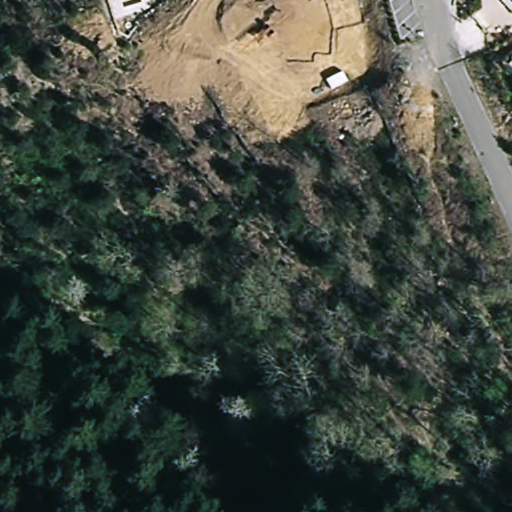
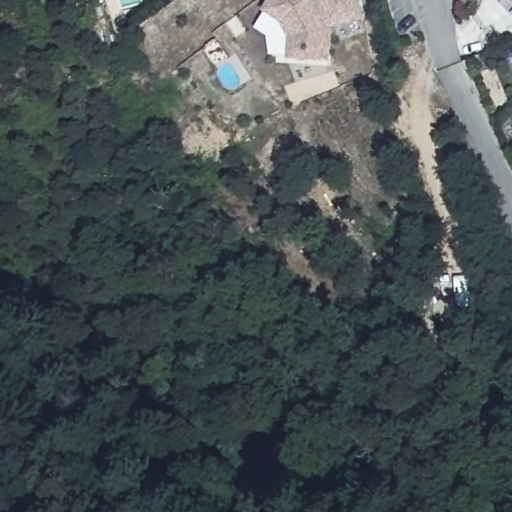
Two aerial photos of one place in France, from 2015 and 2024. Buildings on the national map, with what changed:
new [(260,3),(258,0),(264,0),(260,3)]
new [(311,62),(292,62),(292,43),(283,27),(266,17),(277,0),(309,0),(310,1),(313,0),(354,0),(360,24),(329,33),(326,23),(321,24),(328,36),(328,54),(327,63),(311,62)]
unchanged [(512,5),(507,0),(512,0),(512,5)]

